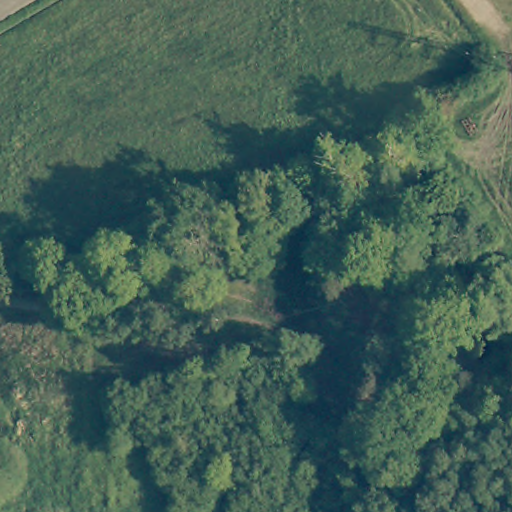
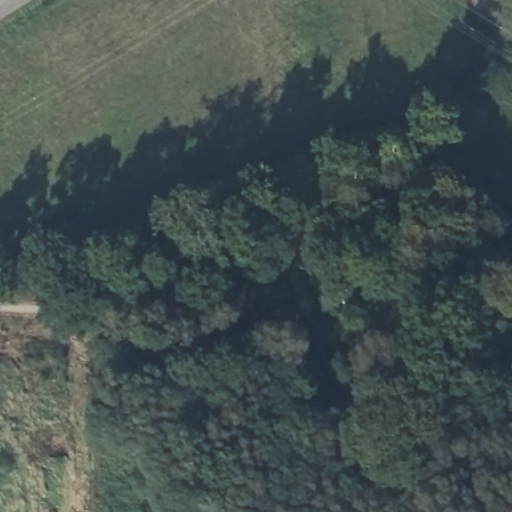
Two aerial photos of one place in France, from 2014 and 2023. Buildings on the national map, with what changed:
unchanged [(355,299),(373,304),(371,313),(382,316),(377,336),(348,329),(355,299)]

